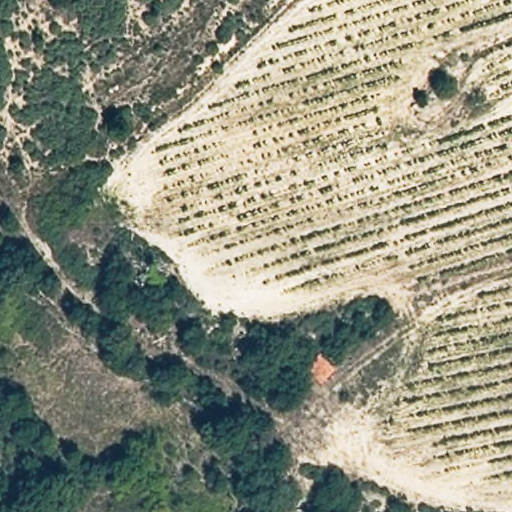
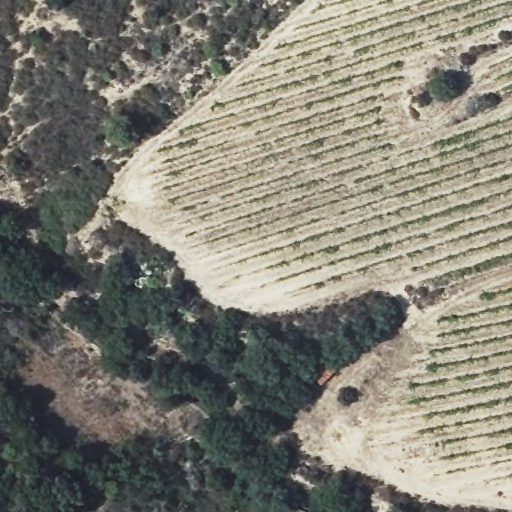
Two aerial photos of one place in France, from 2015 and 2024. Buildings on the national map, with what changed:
unchanged [(322,358),(336,374),(324,386),(308,370),(322,358)]

